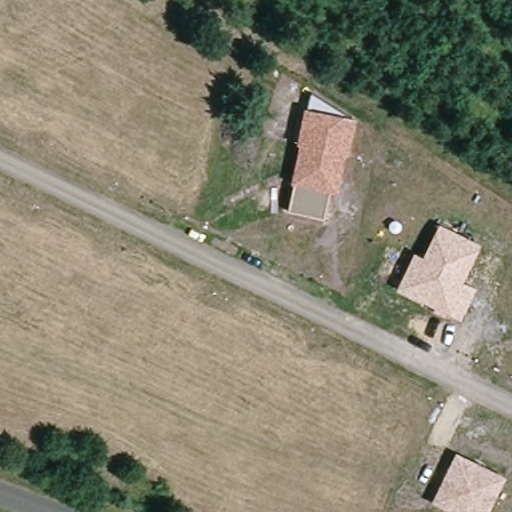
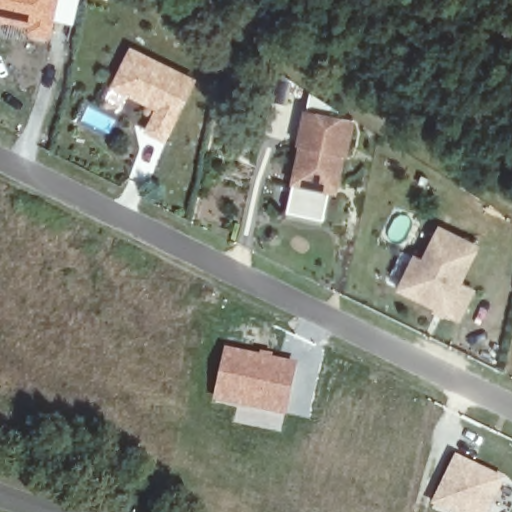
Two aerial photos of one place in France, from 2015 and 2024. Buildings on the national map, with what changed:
new [(54,22),(50,42),(24,36),(25,29),(0,23),(0,0),(80,0),(74,26),(54,22)]
new [(104,0),(109,0),(109,1),(104,0)]
new [(145,132),(155,110),(110,88),(130,46),(197,80),(166,143),(145,132)]
unchanged [(289,212),(295,186),(291,184),(299,148),(295,146),(303,109),(308,110),(311,94),(355,121),(348,156),(346,158),(338,194),(329,192),(323,219),(289,212)]
unchanged [(396,290),(414,254),(422,258),(439,224),(481,246),(463,284),(475,290),(460,322),(396,290)]
new [(211,401),(224,345),(265,352),(299,361),(285,417),(281,432),(234,421),(236,406),(211,401)]
unchanged [(456,454),(506,478),(491,512),(449,512),(431,503),(456,454)]

